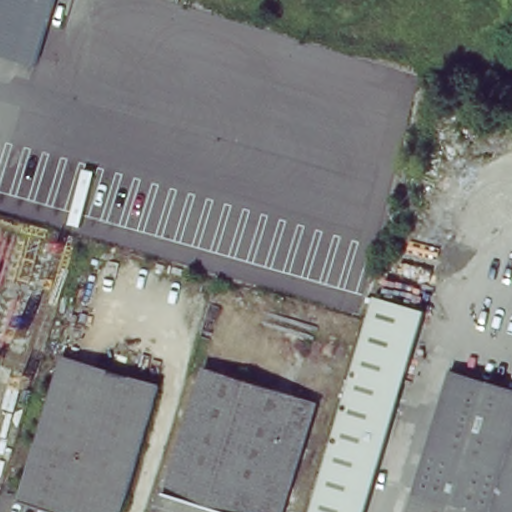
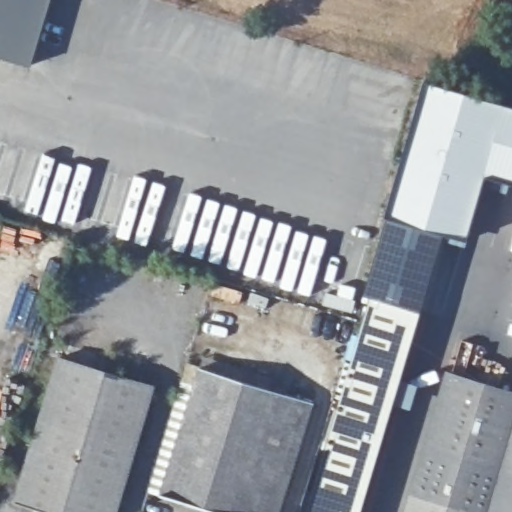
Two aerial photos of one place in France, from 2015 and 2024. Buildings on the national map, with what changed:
unchanged [(0,59),(0,0),(52,0),(31,68),(0,59)]
new [(387,215),(425,80),(512,105),(512,181),(484,172),(466,240),(440,233),(419,310),(413,308),(372,296),(362,293),(387,215)]
unchanged [(307,512),(358,344),(364,321),(372,296),(413,308),(405,333),(398,357),(352,512),(307,512)]
unchanged [(80,459),(31,443),(58,356),(106,371),(80,459)]
unchanged [(220,512),(161,494),(201,365),(314,401),(279,512),(220,512)]
unchanged [(405,512),(448,369),(512,388),(512,512),(405,512)]
unchanged [(106,371),(155,387),(116,512),(49,512),(13,501),(31,443),(80,459),(106,371)]

